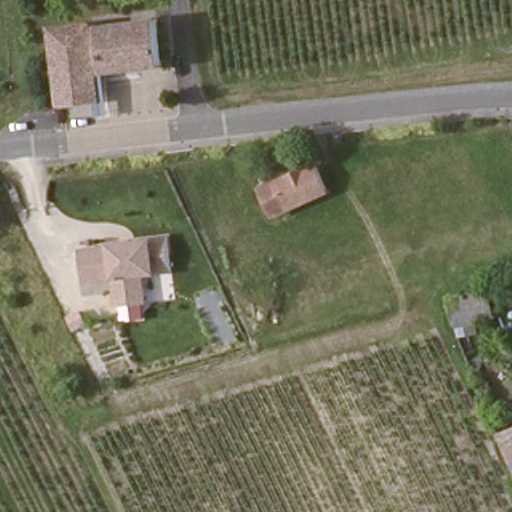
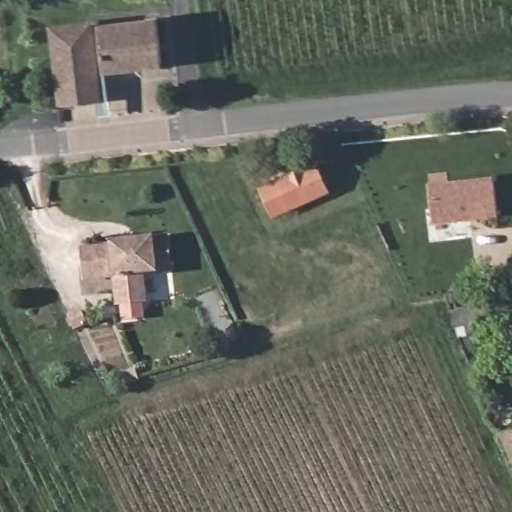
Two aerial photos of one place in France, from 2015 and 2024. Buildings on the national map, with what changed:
unchanged [(166,70),(111,76),(106,76),(99,24),(161,18),(166,70)]
unchanged [(106,76),(111,76),(111,112),(100,114),(98,102),(60,107),(51,26),(96,19),(99,24),(106,76)]
unchanged [(333,190),(283,214),(268,187),(321,163),(333,190)]
new [(433,225),(428,184),(493,176),(498,217),(433,225)]
unchanged [(173,271),(148,274),(148,302),(118,305),(116,277),(86,282),(83,248),(170,237),(173,271)]
unchanged [(512,297),(512,328),(473,332),(472,302),(512,297)]
unchanged [(504,436),(512,433),(512,457),(504,436)]

